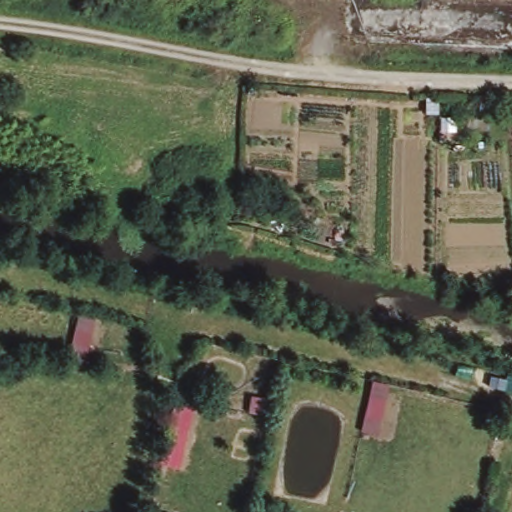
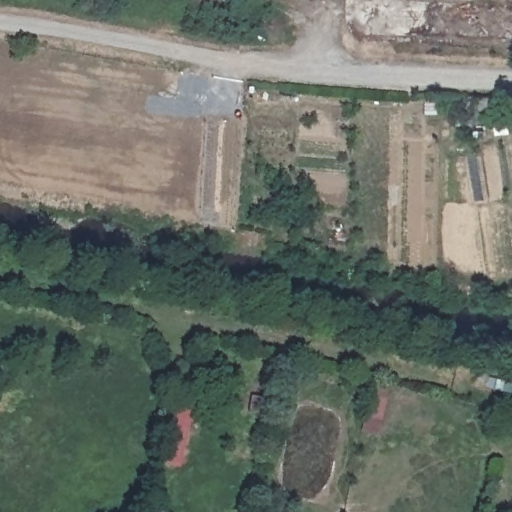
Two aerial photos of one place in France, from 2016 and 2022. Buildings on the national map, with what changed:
unchanged [(425,114),(425,98),(438,98),(437,113),(425,114)]

